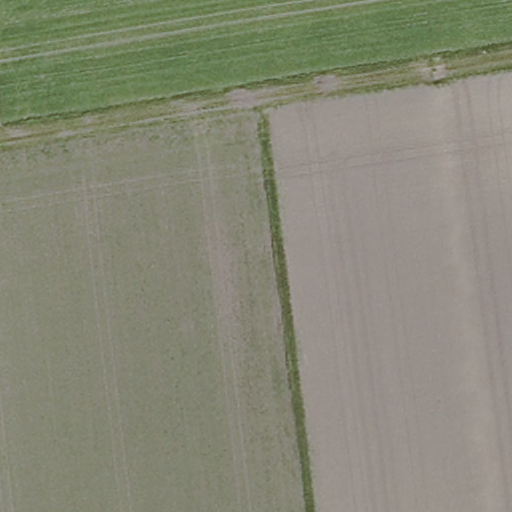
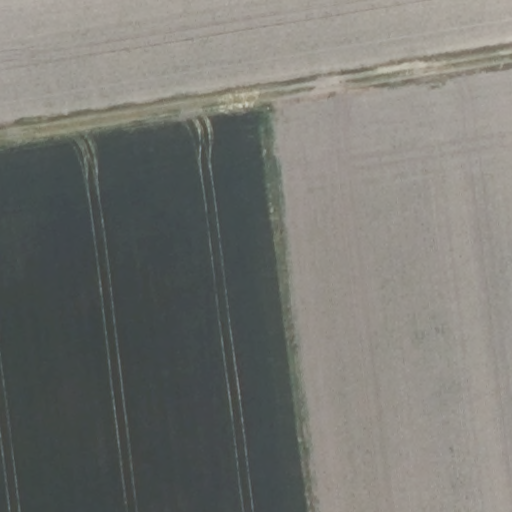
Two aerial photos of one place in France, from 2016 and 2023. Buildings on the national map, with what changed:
[]

